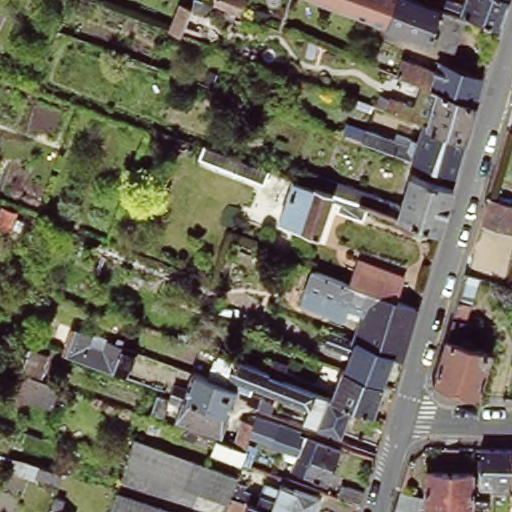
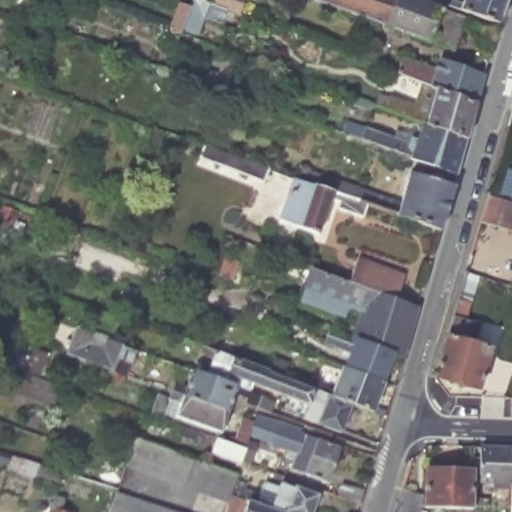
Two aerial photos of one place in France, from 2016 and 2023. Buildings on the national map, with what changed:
unchanged [(184,27),(182,32),(170,27),(180,0),(183,0),(192,4),(192,6),(207,12),(199,32),(184,27)]
unchanged [(214,0),(244,0),(239,12),(213,3),(214,0)]
unchanged [(451,51),(310,0),(410,0),(462,20),(451,51)]
unchanged [(498,27),(425,0),(437,0),(437,1),(446,4),(447,0),(450,0),(462,5),(464,0),(507,0),(509,1),(498,27)]
unchanged [(507,0),(509,0),(509,1),(507,0)]
unchanged [(433,90),(397,77),(404,59),(440,72),(444,63),(489,79),(481,107),(440,92),(433,90)]
unchanged [(471,143),(427,127),(392,113),(396,102),(435,116),(440,92),(481,107),(471,143)]
unchanged [(371,102),(369,106),(351,99),(352,95),(371,102)]
unchanged [(354,139),(357,128),(376,136),(377,134),(397,142),(400,135),(421,143),(427,127),(471,143),(461,178),(418,162),(354,139)]
unchanged [(265,177),(199,154),(203,142),(269,167),(265,177)]
unchanged [(310,170),(404,205),(418,162),(461,178),(445,234),(371,207),(305,183),(310,170)]
unchanged [(305,183),(371,207),(367,220),(342,211),(344,204),(336,201),(324,235),(285,220),(299,181),(305,183)]
unchanged [(512,206),(512,233),(482,225),(490,200),(512,206)]
unchanged [(372,263),(415,280),(407,300),(364,283),(372,263)]
unchanged [(305,285),(311,266),(338,273),(332,291),(348,297),(350,292),(377,302),(372,316),(347,307),(344,318),(299,301),(305,285)]
unchanged [(377,302),(350,292),(348,297),(332,291),(338,273),(364,283),(407,300),(422,306),(407,356),(400,352),(388,381),(352,367),(362,338),(377,302)]
unchanged [(462,276),(481,281),(468,320),(482,323),(474,347),(444,337),(462,276)]
unchanged [(327,323),(362,338),(351,346),(322,335),(327,323)]
unchanged [(132,349),(123,373),(110,368),(63,352),(72,330),(89,336),(85,345),(101,351),(105,342),(120,347),(121,345),(132,349)]
unchanged [(496,354),(484,397),(431,379),(444,337),(474,347),(496,354)]
unchanged [(20,342),(47,352),(39,375),(11,365),(20,342)]
unchanged [(259,408),(240,401),(243,388),(239,387),(227,382),(212,377),(221,356),(201,348),(204,342),(272,370),(277,358),(292,365),(288,376),(337,396),(356,402),(344,430),(310,418),(315,404),(287,393),(260,382),(252,392),(264,396),(277,401),(274,412),(259,408)]
unchanged [(337,396),(349,366),(352,367),(388,381),(377,411),(356,402),(337,396)]
unchanged [(170,391),(174,382),(185,386),(191,369),(212,377),(227,382),(239,387),(230,412),(170,391)]
unchanged [(230,412),(222,431),(179,415),(182,404),(167,400),(167,398),(170,391),(230,412)]
unchanged [(165,410),(162,419),(152,416),(159,395),(165,410)]
unchanged [(219,441),(227,443),(230,437),(236,439),(242,420),(255,424),(257,417),(310,433),(309,437),(344,447),(331,481),(297,470),(302,453),(287,448),(284,455),(276,452),(278,446),(251,436),(246,451),(242,463),(212,452),(217,440),(219,441)]
unchanged [(134,438),(236,477),(234,486),(231,498),(230,503),(125,464),(134,438)]
unchanged [(492,489),(492,484),(482,484),(483,452),(512,452),(512,490),(492,489)]
unchanged [(59,478),(39,472),(42,461),(62,468),(59,478)]
unchanged [(427,510),(427,471),(477,471),(475,511),(427,510)]
unchanged [(337,495),(341,482),(364,488),(360,502),(337,495)]
unchanged [(245,489),(244,494),(261,499),(262,497),(265,488),(275,492),(277,485),(291,489),(291,487),(317,495),(312,512),(277,512),(231,498),(234,486),(245,489)]
unchanged [(404,492),(425,497),(420,512),(398,512),(404,492)]
unchanged [(116,497),(161,512),(110,512),(116,497)]
unchanged [(230,503),(231,498),(277,512),(228,512),(230,503)]
unchanged [(489,501),(489,509),(477,509),(477,501),(489,501)]
unchanged [(51,502),(74,510),(73,512),(48,512),(51,502)]

